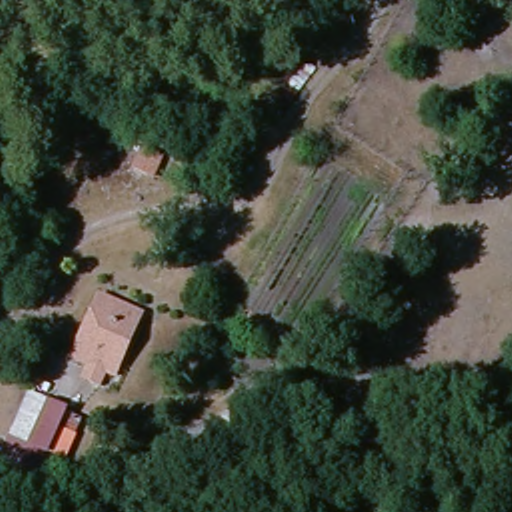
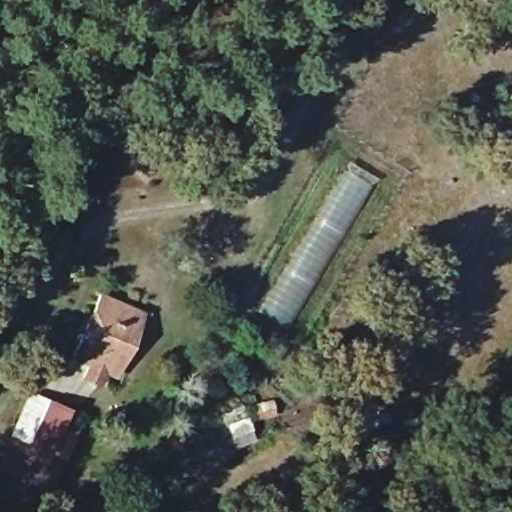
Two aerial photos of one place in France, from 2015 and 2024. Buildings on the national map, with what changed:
new [(377,187),(289,326),(264,311),(348,171),(377,187)]
unchanged [(110,363),(101,379),(79,368),(86,352),(76,347),(101,302),(142,326),(119,371),(110,363)]
unchanged [(34,395),(87,420),(71,459),(41,446),(32,467),(7,456),(34,395)]

